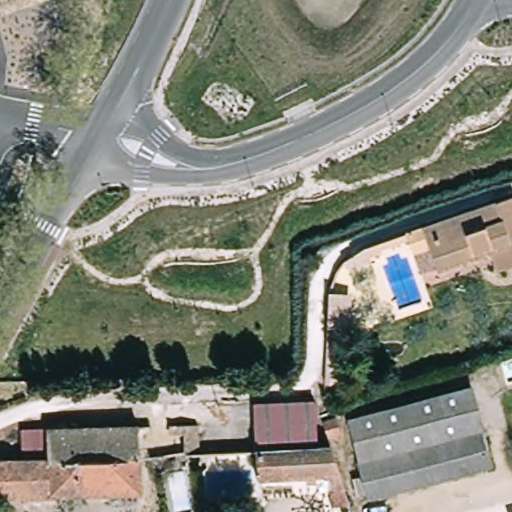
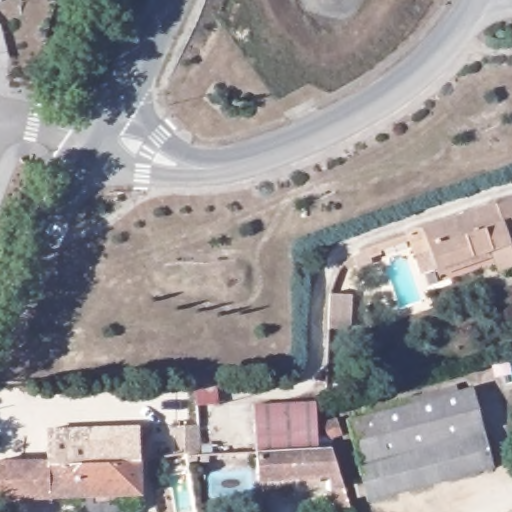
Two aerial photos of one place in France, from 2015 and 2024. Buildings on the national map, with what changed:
unchanged [(442,221),(512,198),(512,225),(435,249),(431,234),(429,225),(442,221)]
unchanged [(440,265),(435,249),(512,225),(512,266),(497,271),(495,262),(444,277),(440,265)]
unchanged [(475,385),(497,465),(368,499),(347,417),(475,385)]
unchanged [(261,449),(259,402),(321,401),(323,446),(261,449)]
unchanged [(180,414),(197,413),(198,446),(182,446),(180,414)]
unchanged [(26,430),(141,427),(141,457),(125,458),(41,460),(26,460),(26,430)]
unchanged [(352,510),(337,510),(336,476),(262,478),(261,449),(323,446),(334,446),(352,510)]
unchanged [(26,460),(41,460),(125,458),(141,457),(142,492),(0,495),(0,460),(16,460),(26,460)]

